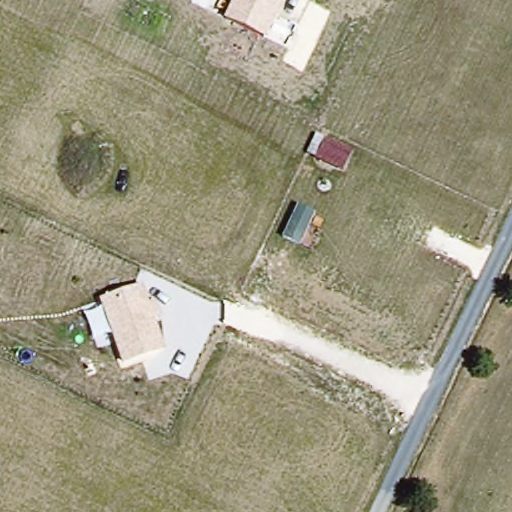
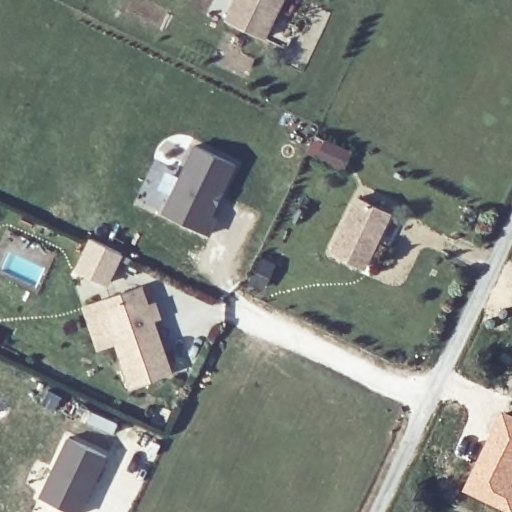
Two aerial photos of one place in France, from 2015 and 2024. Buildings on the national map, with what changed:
unchanged [(225,17),(233,0),(282,0),(264,37),(225,17)]
new [(194,145),(236,165),(212,216),(218,219),(210,236),(162,212),(194,145)]
new [(393,213),(367,268),(331,252),(357,196),(393,213)]
new [(107,285),(75,270),(90,237),(124,253),(107,285)]
unchanged [(165,351),(122,365),(100,298),(144,285),(165,351)]
new [(172,371),(130,387),(122,365),(165,351),(172,371)]
new [(512,416),(512,512),(507,512),(464,491),(502,412),(512,416)]
new [(67,436),(107,455),(79,512),(73,512),(38,495),(67,436)]

